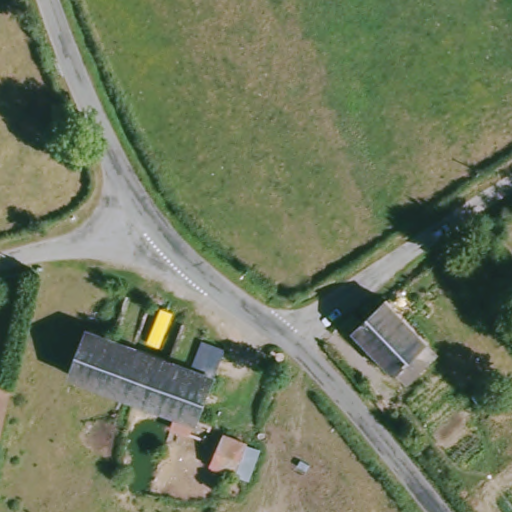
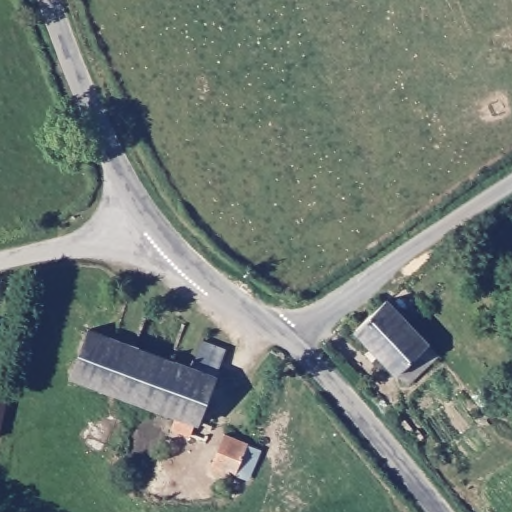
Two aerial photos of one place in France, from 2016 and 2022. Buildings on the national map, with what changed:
unchanged [(391,298),(441,357),(412,383),(398,370),(395,374),(358,328),(365,321),(391,298)]
unchanged [(199,368),(210,340),(233,349),(222,377),(204,423),(201,422),(195,436),(176,428),(181,416),(79,375),(97,327),(199,368)]
unchanged [(2,443),(0,442),(0,387),(15,390),(2,443)]
unchanged [(248,479),(228,471),(242,440),(261,447),(248,479)]

